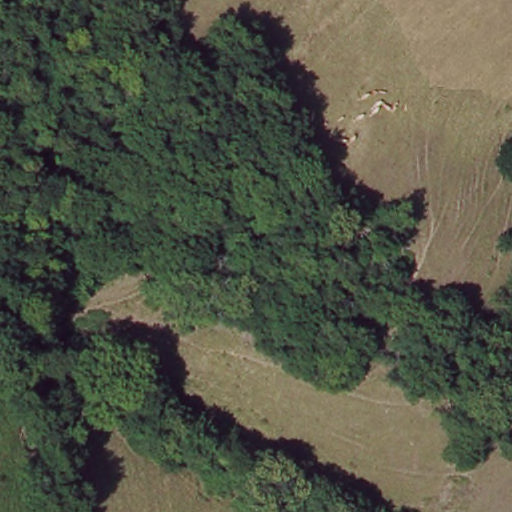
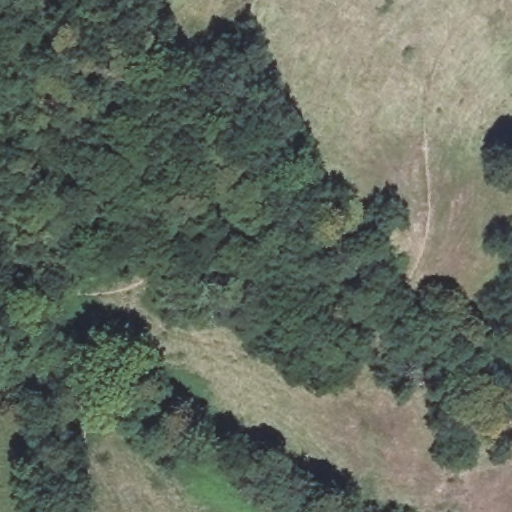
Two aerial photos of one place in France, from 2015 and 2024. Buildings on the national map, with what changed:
unchanged [(15,320),(11,360),(0,360),(0,320),(15,320)]
unchanged [(72,427),(51,433),(50,429),(45,406),(66,400),(72,427)]

